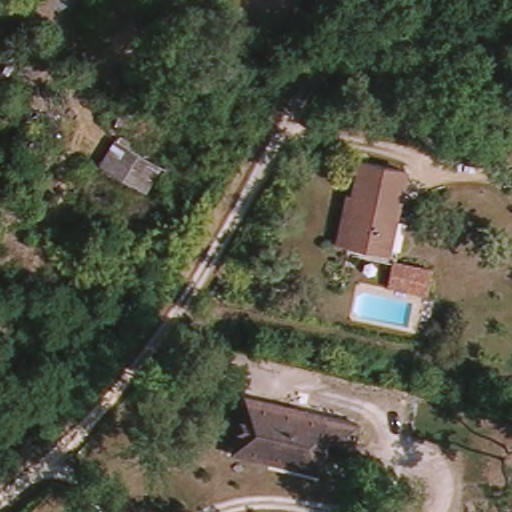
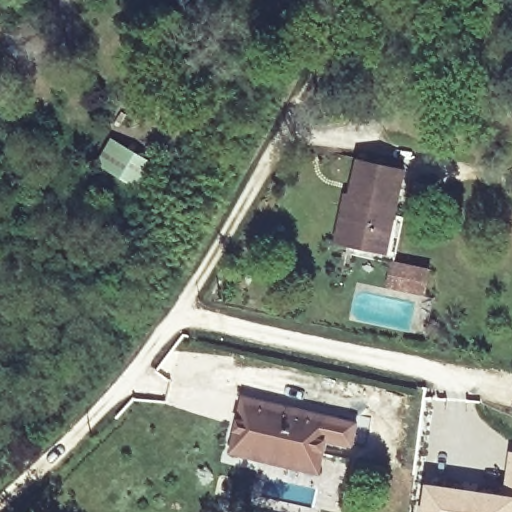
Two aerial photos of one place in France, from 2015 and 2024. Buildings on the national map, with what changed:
unchanged [(119,138),(162,165),(149,187),(106,160),(119,138)]
unchanged [(348,200),(352,201),(360,163),(405,174),(388,254),(351,245),(338,242),(348,200)]
unchanged [(395,264),(430,271),(426,296),(389,290),(395,264)]
unchanged [(287,471),(233,458),(246,405),(358,431),(353,451),(343,449),(341,458),(326,455),(321,479),(287,471)]
new [(426,482),(504,492),(510,450),(512,451),(512,512),(423,512),(426,482)]

